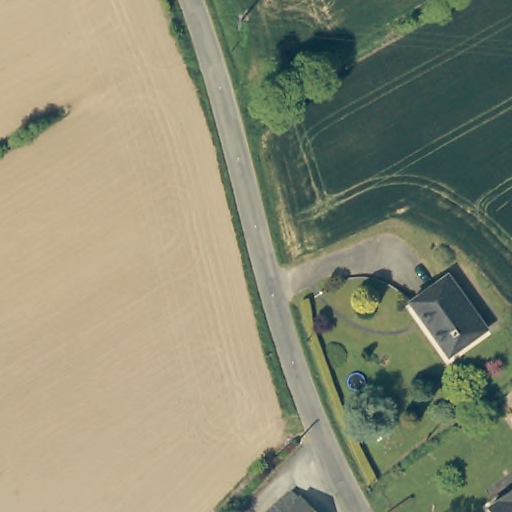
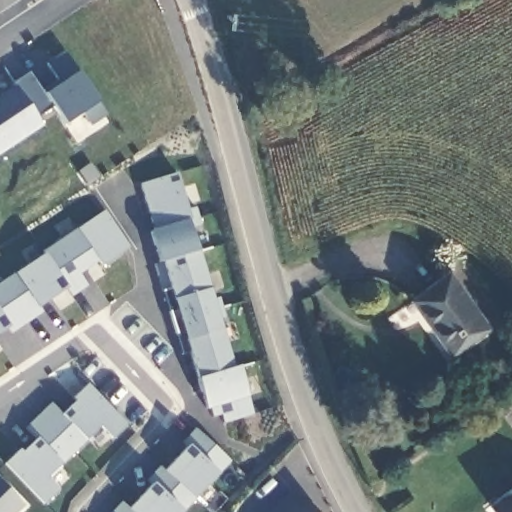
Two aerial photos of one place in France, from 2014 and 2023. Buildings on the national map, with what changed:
new [(80,71),(99,102),(65,124),(54,107),(38,116),(14,82),(31,71),(42,89),(55,80),(44,63),(65,49),(80,71)]
new [(180,174),(191,210),(199,208),(202,218),(158,231),(144,184),(180,174)]
new [(45,253),(107,211),(132,248),(105,266),(101,261),(82,274),(90,286),(74,297),(46,254),(45,253)]
new [(204,227),(194,229),(201,252),(163,263),(154,232),(202,218),(204,227)]
new [(183,322),(191,351),(181,354),(163,292),(159,293),(152,266),(163,263),(198,253),(217,312),(183,322)]
new [(46,255),(69,289),(41,307),(45,313),(29,323),(2,283),(46,255)]
unchanged [(448,273),(487,327),(450,353),(411,299),(448,273)]
new [(2,283),(29,323),(13,334),(9,329),(0,335),(0,285),(2,283)]
new [(233,308),(225,310),(228,319),(221,321),(235,370),(200,381),(183,322),(233,307),(233,308)]
new [(256,364),(256,365),(242,370),(255,416),(226,425),(223,416),(215,418),(212,409),(208,410),(200,381),(235,370),(256,364)]
new [(129,426),(114,440),(102,428),(75,454),(40,417),(53,404),(64,415),(78,402),(75,399),(90,385),(129,426)]
new [(75,454),(48,479),(60,492),(45,505),(6,465),(21,451),(23,453),(37,440),(27,429),(40,417),(75,454)]
new [(232,463),(196,501),(166,473),(189,448),(185,444),(198,430),(232,463)]
new [(132,512),(130,510),(153,486),(149,482),(162,468),(196,501),(186,512),(132,512)]
new [(0,512),(0,481),(23,506),(17,512),(0,512)]
unchanged [(512,489),(512,512),(495,512),(490,505),(512,489)]
unchanged [(302,498),(314,512),(268,512),(292,490),(300,499),(302,498)]
new [(116,512),(123,504),(132,512),(116,512)]

